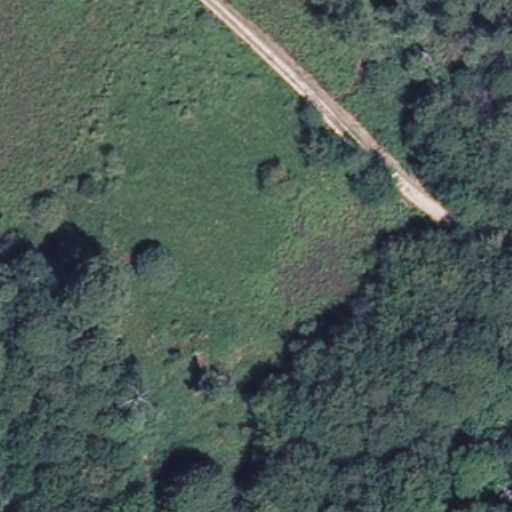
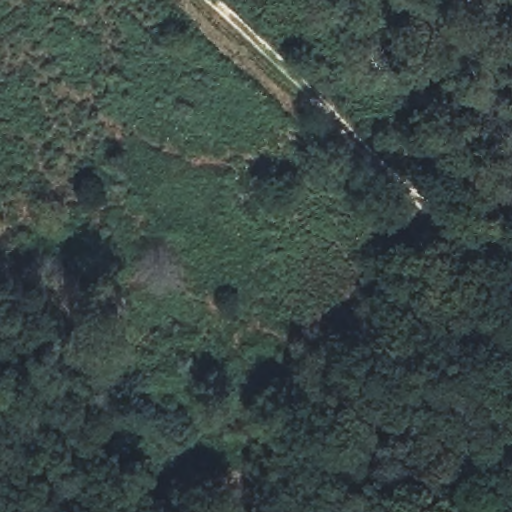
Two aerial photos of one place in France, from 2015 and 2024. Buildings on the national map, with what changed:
[]

